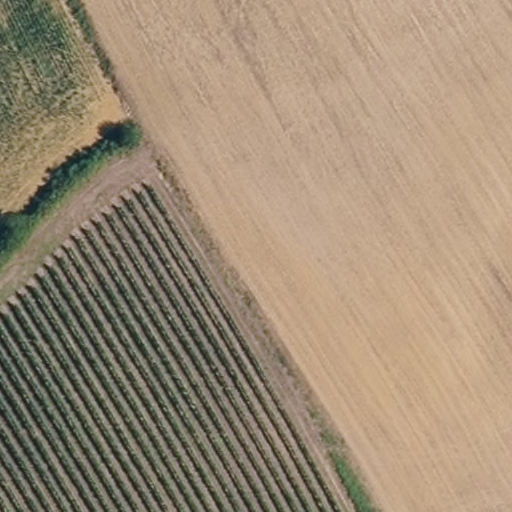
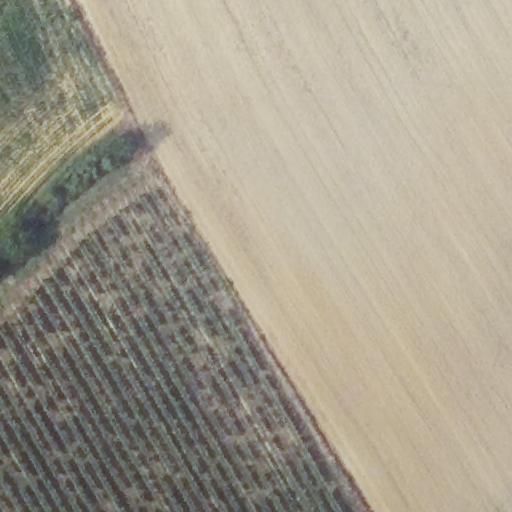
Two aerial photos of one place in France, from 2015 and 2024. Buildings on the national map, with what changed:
[]

